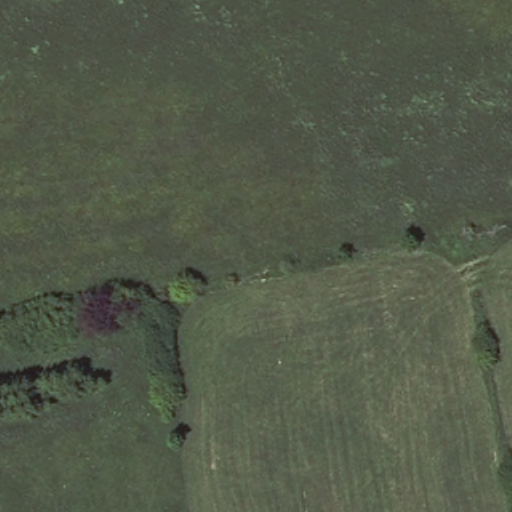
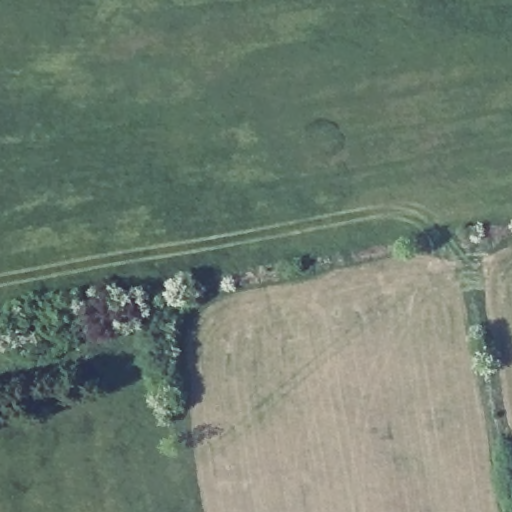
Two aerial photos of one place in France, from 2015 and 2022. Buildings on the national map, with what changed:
[]

